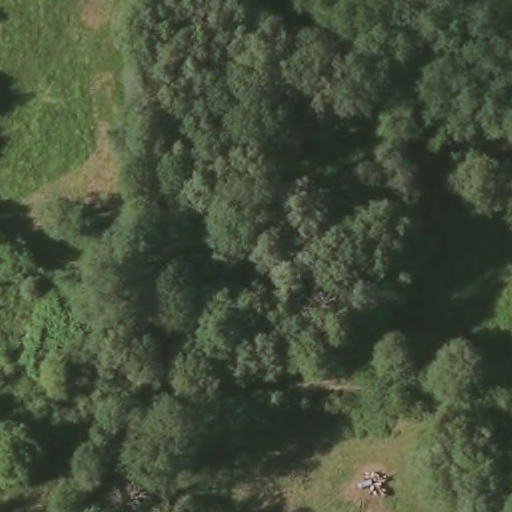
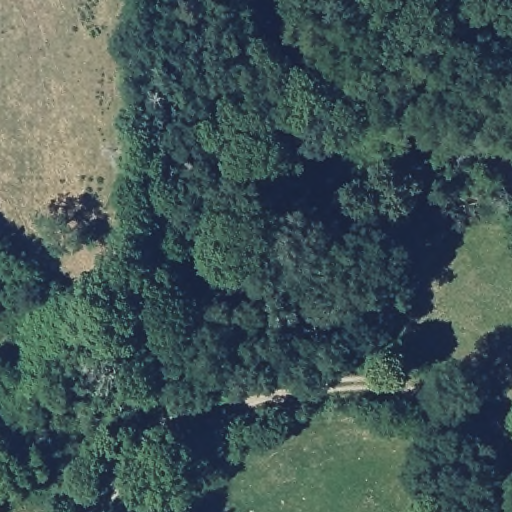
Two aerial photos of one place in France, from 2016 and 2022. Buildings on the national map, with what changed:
unchanged [(327,360),(235,380),(227,335),(263,327),(265,334),(318,321),(327,360)]

